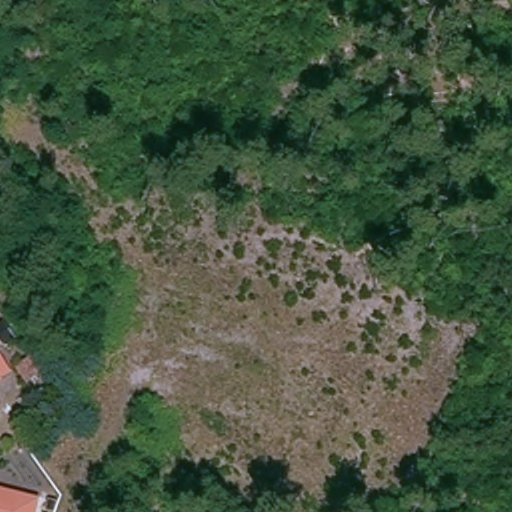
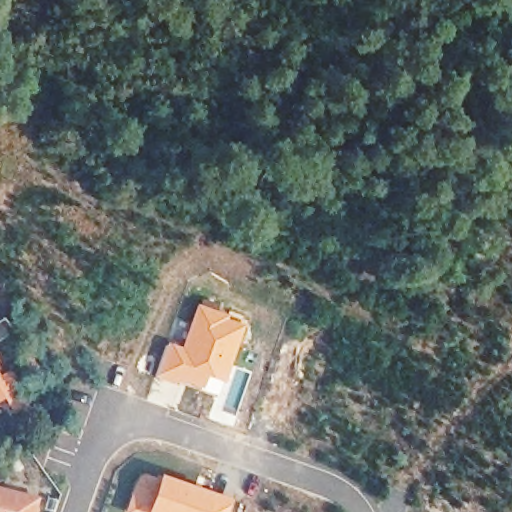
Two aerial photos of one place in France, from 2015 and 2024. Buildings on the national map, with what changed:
new [(167,341),(180,346),(196,303),(242,320),(216,396),(180,384),(179,387),(154,378),(167,341)]
unchanged [(6,378),(0,381),(0,369),(6,378)]
new [(234,498),(229,512),(124,512),(141,472),(156,477),(158,473),(234,498)]
unchanged [(40,497),(36,512),(0,512),(0,487),(40,497)]

